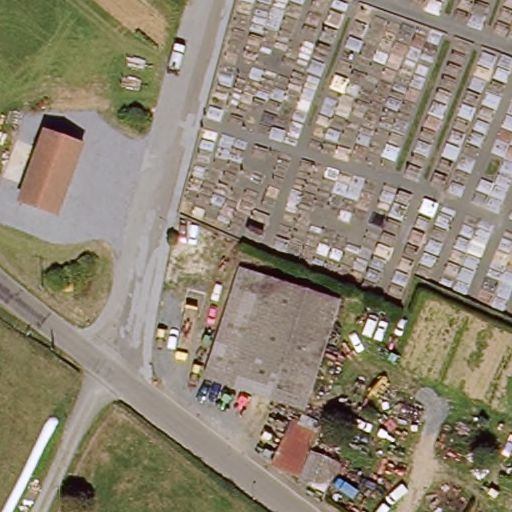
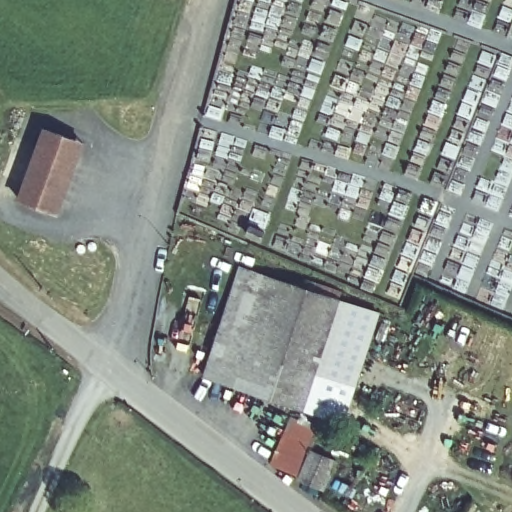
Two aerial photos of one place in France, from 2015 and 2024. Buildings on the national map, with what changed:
unchanged [(42,133),(73,144),(80,146),(75,162),(55,218),(17,204),(42,133)]
unchanged [(207,379),(242,271),(342,305),(305,411),(207,379)]
new [(355,388),(317,376),(342,305),(380,315),(355,388)]
unchanged [(302,476),(277,467),(272,463),(290,419),(321,431),(312,451),(338,461),(326,491),(300,480),(302,476)]

